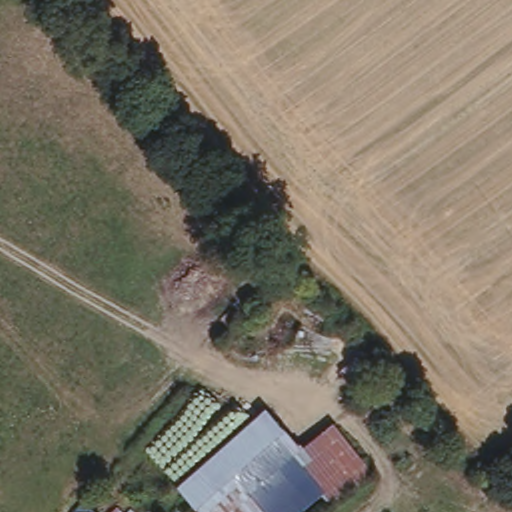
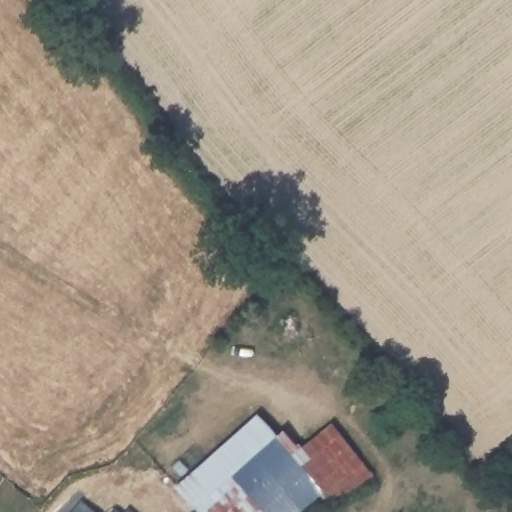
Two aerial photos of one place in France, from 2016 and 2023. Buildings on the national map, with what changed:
unchanged [(275,405),(306,447),(222,512),(197,512),(177,482),(275,405)]
unchanged [(377,473),(332,506),(325,497),(306,512),(222,512),(337,422),(377,473)]
unchanged [(116,512),(122,505),(131,512),(116,512)]

